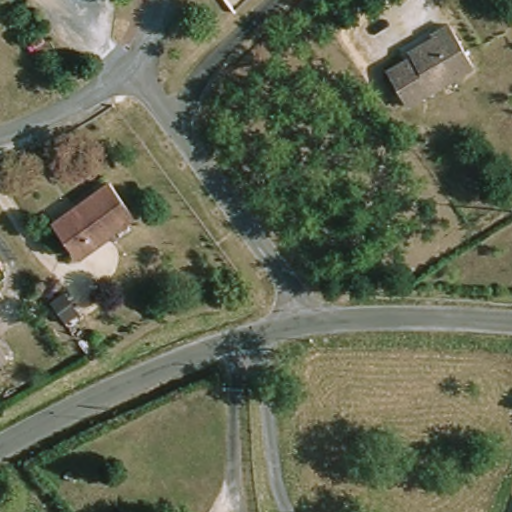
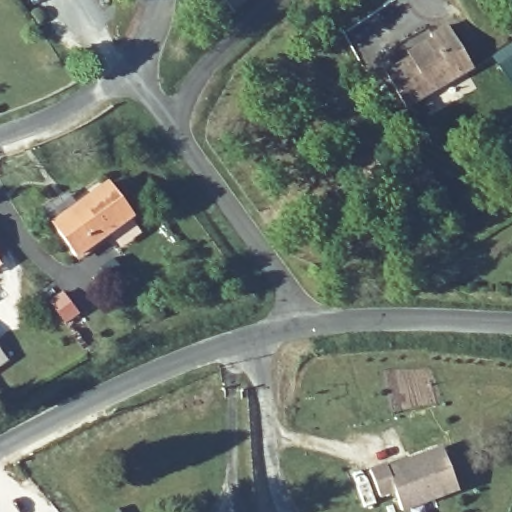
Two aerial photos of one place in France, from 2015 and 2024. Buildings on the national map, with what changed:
unchanged [(453,23),(477,64),(411,104),(391,70),(422,52),(423,45),(437,36),(436,33),(453,23)]
new [(512,60),(512,83),(501,68),(512,60)]
unchanged [(77,256),(54,222),(109,184),(132,217),(77,256)]
unchanged [(0,358),(0,356),(1,357),(0,358)]
new [(384,465),(385,469),(439,448),(455,489),(400,511),(392,491),(378,497),(367,472),(384,465)]

